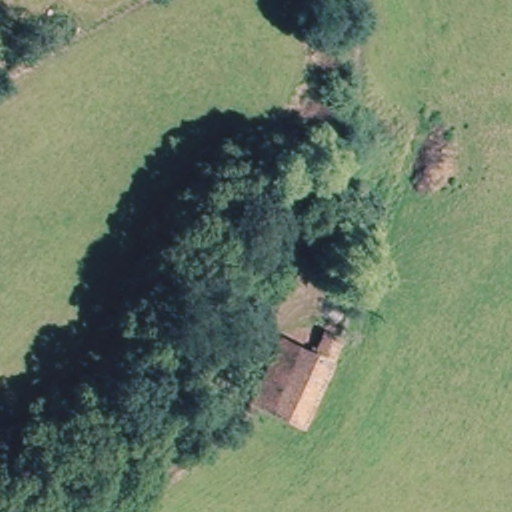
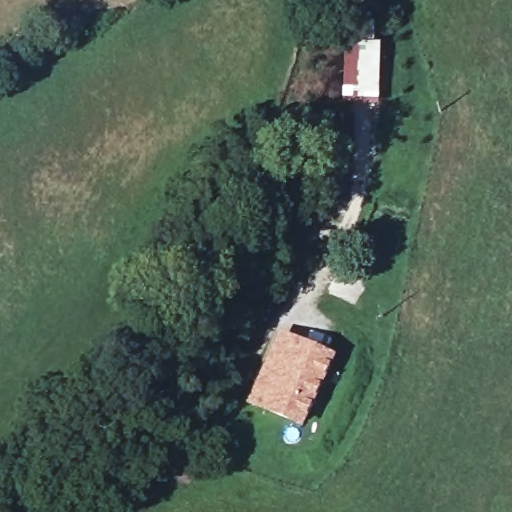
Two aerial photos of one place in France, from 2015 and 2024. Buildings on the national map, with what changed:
new [(347,42),(382,43),(381,99),(343,97),(347,42)]
unchanged [(261,411),(254,408),(284,345),(312,360),(325,336),(339,343),(327,368),(297,429),(261,411)]

